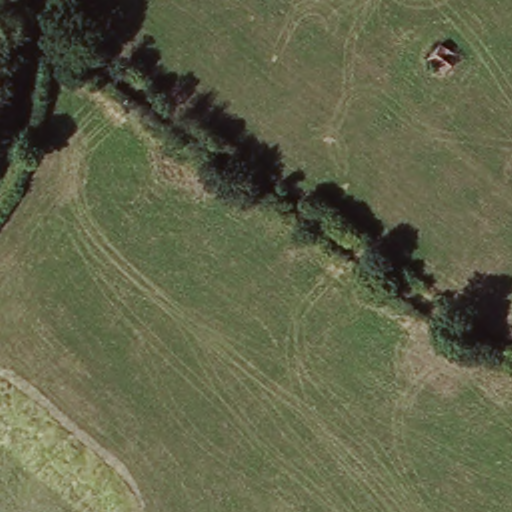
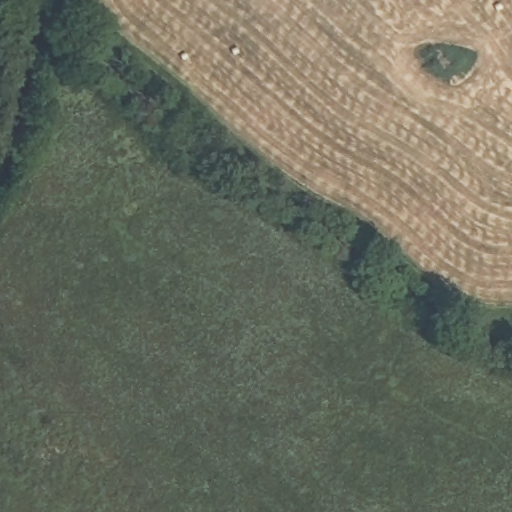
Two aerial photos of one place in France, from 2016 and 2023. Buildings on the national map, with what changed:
unchanged [(442,47),(454,60),(443,72),(432,57),(442,47)]

